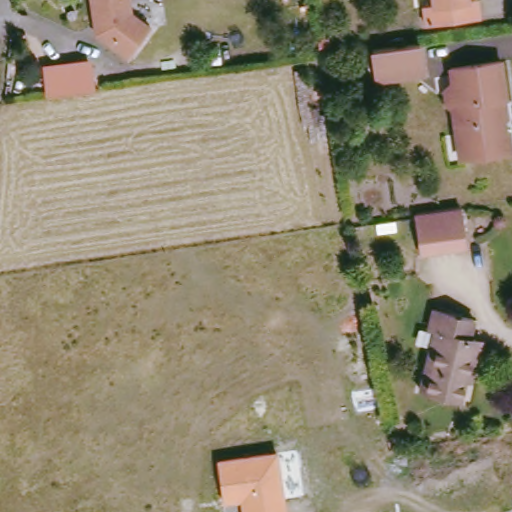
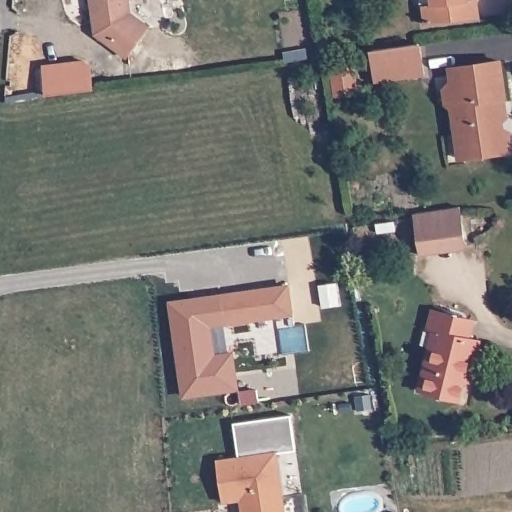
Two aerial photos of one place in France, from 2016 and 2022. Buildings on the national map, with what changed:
unchanged [(152,24),(130,50),(102,30),(102,21),(95,21),(93,0),(132,0),(134,9),(152,24)]
unchanged [(427,22),(425,6),(435,4),(434,0),(481,0),(482,15),(427,22)]
unchanged [(424,43),(425,71),(380,77),(376,50),(424,43)]
unchanged [(506,151),(466,157),(464,139),(457,131),(455,104),(449,104),(447,90),(453,90),(457,85),(455,66),(505,60),(510,102),(507,102),(512,150),(506,151)]
unchanged [(55,97),(47,99),(44,70),(82,65),(89,70),(92,92),(55,97)]
unchanged [(352,71),(354,96),(335,97),(332,73),(352,71)]
unchanged [(464,204),(471,247),(427,255),(420,210),(464,204)]
new [(184,397),(169,301),(290,284),(295,316),(214,328),(217,354),(235,351),(241,389),(184,397)]
unchanged [(477,320),(475,335),(480,336),(467,398),(426,387),(439,330),(432,327),(437,310),(477,320)]
unchanged [(279,450),(288,512),(241,512),(240,501),(223,503),(217,460),(279,450)]

